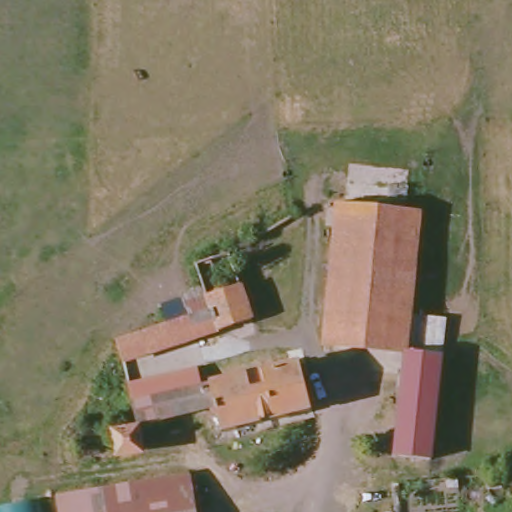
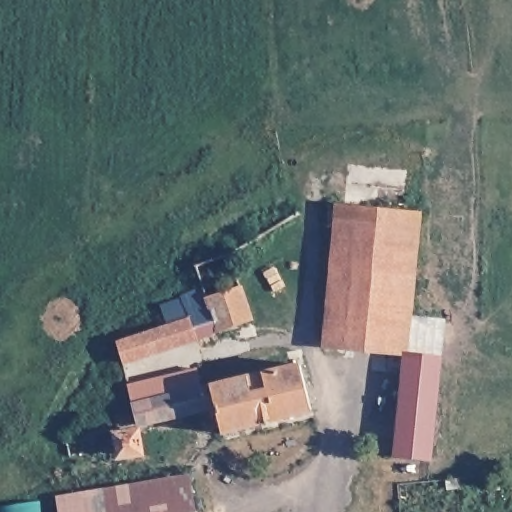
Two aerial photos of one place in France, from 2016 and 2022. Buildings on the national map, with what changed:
unchanged [(335,206),(415,214),(401,353),(322,344),(335,206)]
unchanged [(255,322),(118,370),(112,346),(185,317),(177,297),(202,286),(197,266),(230,253),(255,322)]
unchanged [(440,357),(429,462),(390,458),(401,353),(440,357)]
unchanged [(307,360),(316,409),(228,428),(220,407),(142,425),(135,400),(307,360)]
unchanged [(142,433),(147,452),(126,457),(122,438),(142,433)]
unchanged [(187,472),(194,512),(57,512),(54,497),(77,492),(187,472)]
unchanged [(40,501),(41,512),(0,512),(0,507),(40,501)]

